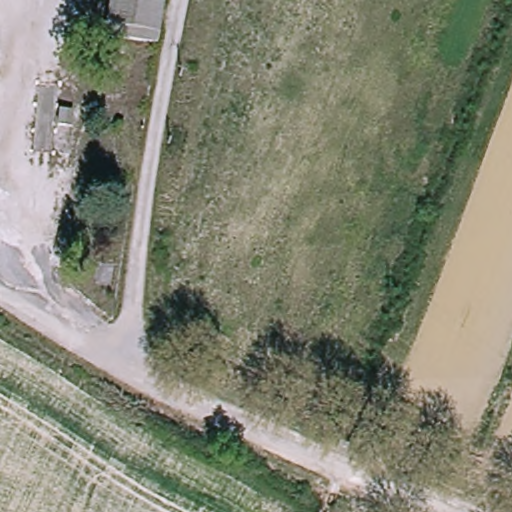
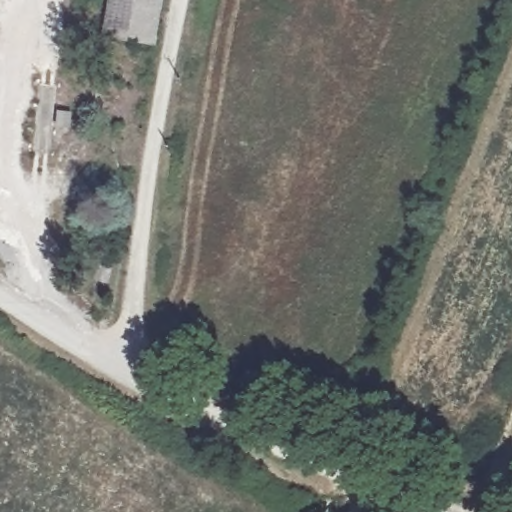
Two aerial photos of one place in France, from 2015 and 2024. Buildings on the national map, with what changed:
unchanged [(102,36),(107,0),(158,0),(152,44),(102,36)]

